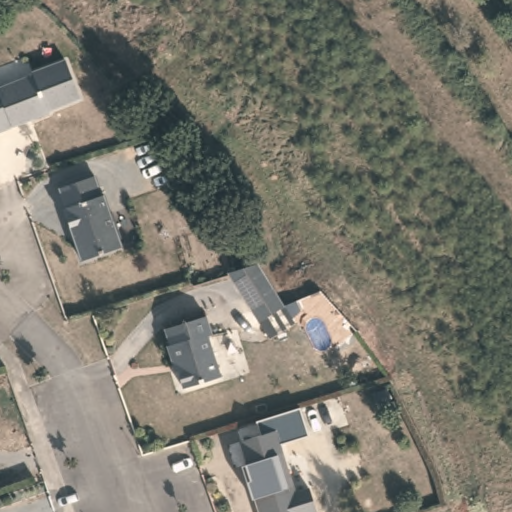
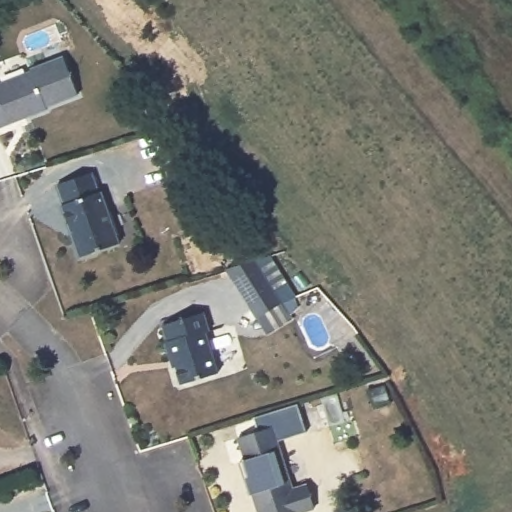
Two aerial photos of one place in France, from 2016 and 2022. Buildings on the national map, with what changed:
unchanged [(64,52),(79,89),(52,100),(53,102),(33,110),(25,105),(9,111),(12,119),(0,123),(0,80),(34,67),(32,65),(64,52)]
unchanged [(96,187),(99,186),(117,238),(76,253),(58,200),(61,199),(54,178),(88,165),(96,187)]
unchanged [(255,260),(283,302),(258,318),(225,269),(255,260)]
unchanged [(207,323),(204,325),(218,368),(181,380),(172,355),(168,355),(161,335),(165,333),(159,318),(201,305),(207,323)]
unchanged [(292,480),(307,475),(315,498),(299,503),(300,506),(281,512),(261,512),(243,455),(246,452),(239,430),(273,419),(292,480)]

